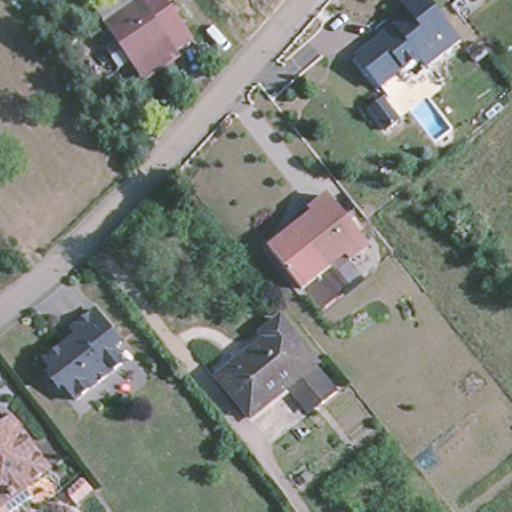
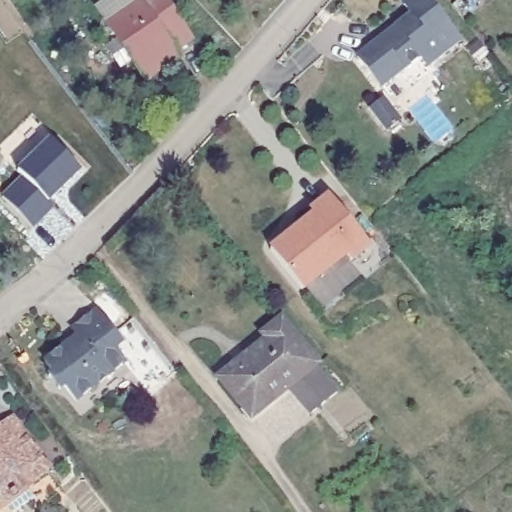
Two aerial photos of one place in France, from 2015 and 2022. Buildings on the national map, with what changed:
unchanged [(174,52),(143,75),(112,29),(106,20),(135,0),(166,0),(189,34),(171,47),(174,52)]
unchanged [(373,80),(352,54),(389,23),(393,24),(407,12),(397,1),(398,0),(422,0),(454,37),(423,63),(415,54),(400,65),(377,84),(373,80)]
new [(402,119),(389,128),(371,106),(383,96),(402,119)]
new [(81,168),(49,198),(54,205),(31,227),(1,196),(21,176),(17,169),(53,137),(81,168)]
unchanged [(349,259),(345,253),(301,288),(268,248),(312,213),(309,209),(328,193),(369,243),(349,259)]
unchanged [(113,329),(106,335),(123,357),(74,396),(42,355),(61,341),(64,345),(78,333),(70,322),(92,304),(113,329)]
unchanged [(220,369),(234,358),(266,332),(262,325),(280,311),(316,355),(311,360),(333,387),(311,405),(289,377),(265,397),(251,408),(220,369)]
unchanged [(45,460),(22,478),(0,495),(0,417),(8,411),(45,460)]
unchanged [(22,478),(29,489),(2,512),(0,512),(0,495),(22,478)]

